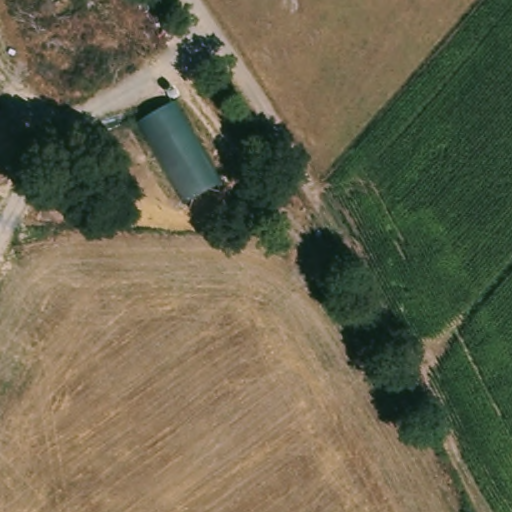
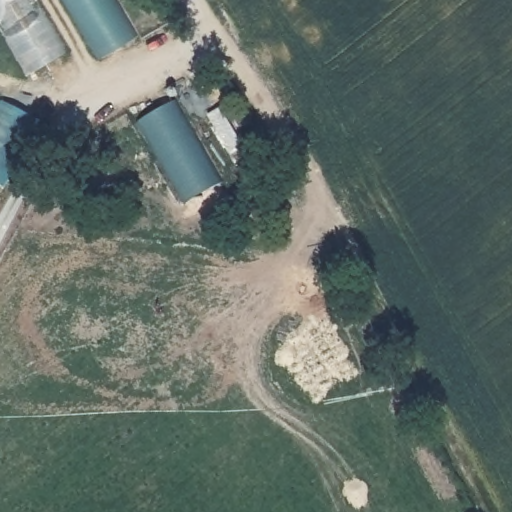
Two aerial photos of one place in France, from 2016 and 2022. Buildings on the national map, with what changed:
new [(28,74),(0,29),(0,0),(37,0),(67,49),(28,74)]
new [(116,0),(137,35),(98,58),(63,0),(116,0)]
new [(5,186),(0,183),(0,99),(35,119),(5,186)]
unchanged [(224,180),(188,203),(142,122),(174,102),(224,180)]

